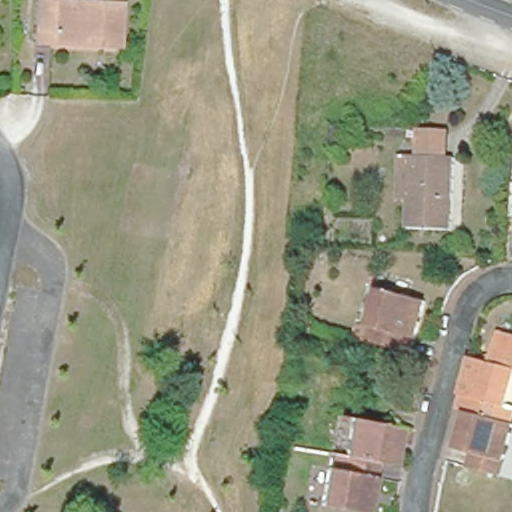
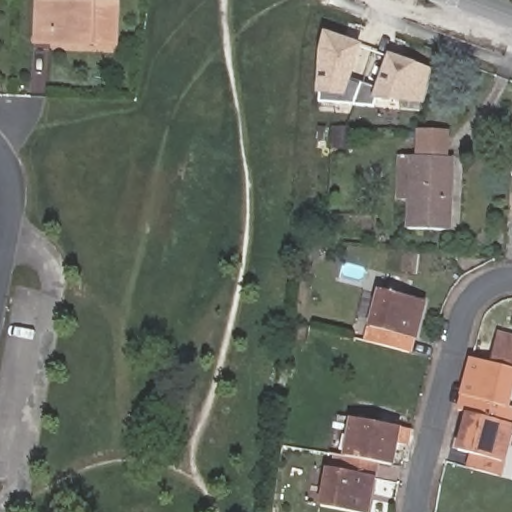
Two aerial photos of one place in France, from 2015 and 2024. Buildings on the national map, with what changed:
unchanged [(115,3),(114,44),(37,41),(38,0),(115,3)]
new [(347,77),(379,87),(390,56),(431,71),(423,102),(376,99),(373,107),(317,103),(319,50),(325,35),(357,46),(347,77)]
unchanged [(447,226),(407,223),(408,200),(388,198),(392,156),(411,158),(416,158),(417,133),(445,135),(443,159),(452,160),(447,226)]
unchanged [(511,213),(512,195),(512,213),(511,213)]
unchanged [(372,290),(420,303),(411,336),(407,353),(394,350),(360,340),(372,290)]
unchanged [(472,360),(491,365),(500,334),(512,338),(512,391),(508,406),(493,404),(490,418),(466,412),(459,410),(472,360)]
unchanged [(490,418),(512,424),(512,432),(500,475),(465,466),(469,453),(457,449),(466,412),(490,418)]
unchanged [(410,431),(407,443),(398,441),(392,466),(377,463),(342,456),(350,417),(410,430),(410,431)]
unchanged [(377,463),(366,512),(362,512),(320,502),(326,468),(339,470),(342,456),(377,463)]

